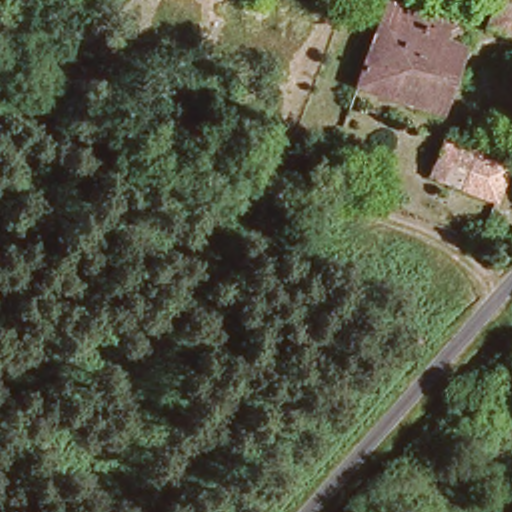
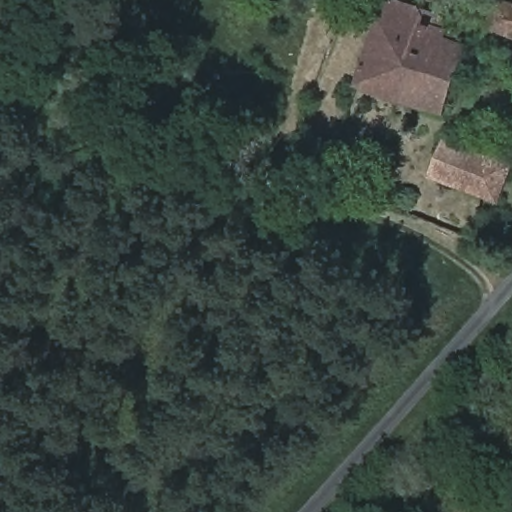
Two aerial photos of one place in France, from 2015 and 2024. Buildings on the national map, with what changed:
unchanged [(482,22),(491,0),(504,0),(512,3),(512,33),(482,22)]
unchanged [(362,83),(357,81),(388,1),(418,12),(416,20),(437,30),(433,46),(455,55),(458,56),(436,112),(362,83)]
unchanged [(495,200),(433,177),(446,142),(507,166),(495,200)]

